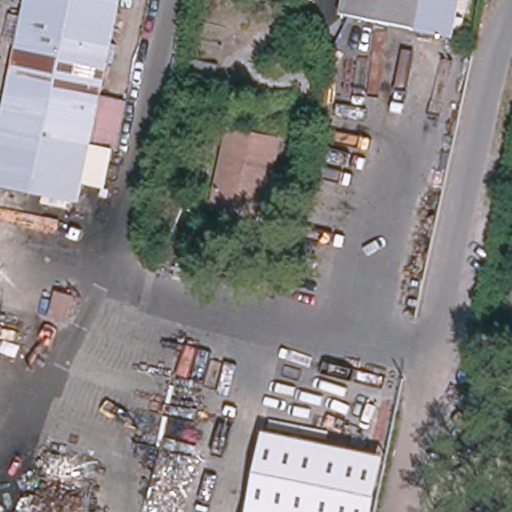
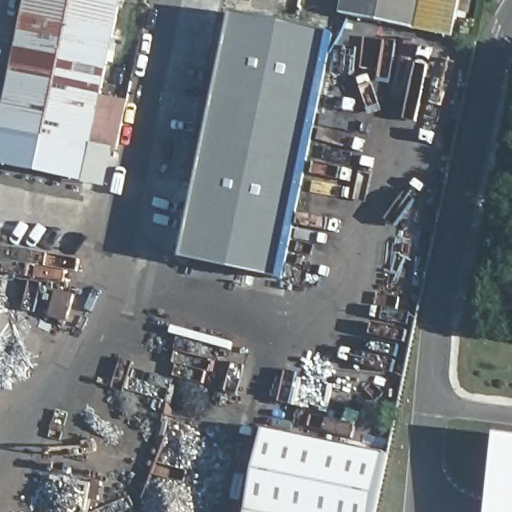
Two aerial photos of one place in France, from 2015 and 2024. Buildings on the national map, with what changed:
unchanged [(121,0),(102,95),(91,145),(91,146),(0,126),(27,0),(121,0)]
unchanged [(340,14),(343,0),(462,0),(454,37),(340,14)]
new [(235,15),(331,35),(281,279),(184,259),(235,15)]
unchanged [(127,105),(117,150),(91,145),(102,95),(128,100),(127,105)]
unchanged [(80,200),(0,184),(0,129),(0,126),(91,146),(80,200)]
demolished [(269,216),(219,206),(234,134),(285,145),(278,177),(269,216)]
unchanged [(67,322),(48,316),(56,290),(75,295),(67,322)]
unchanged [(263,431),(385,455),(374,512),(248,512),(263,431)]
new [(498,435),(512,436),(512,512),(489,512),(498,435)]

